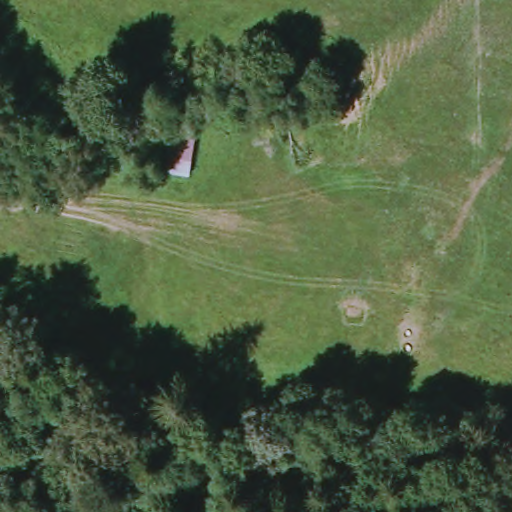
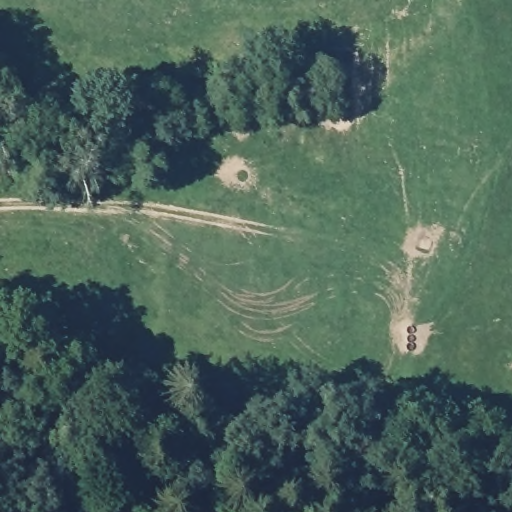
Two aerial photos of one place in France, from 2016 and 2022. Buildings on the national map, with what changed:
unchanged [(192,131),(185,176),(162,173),(170,129),(192,131)]

